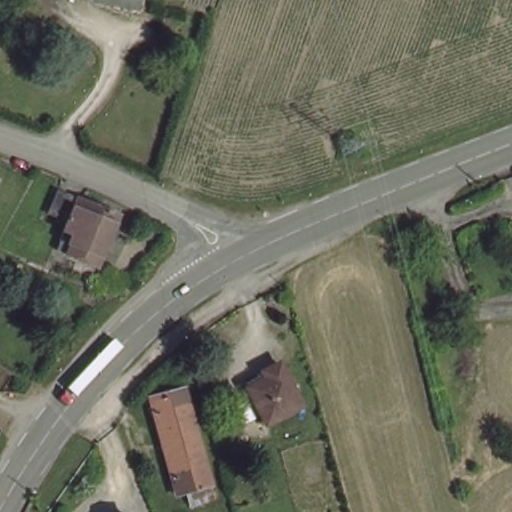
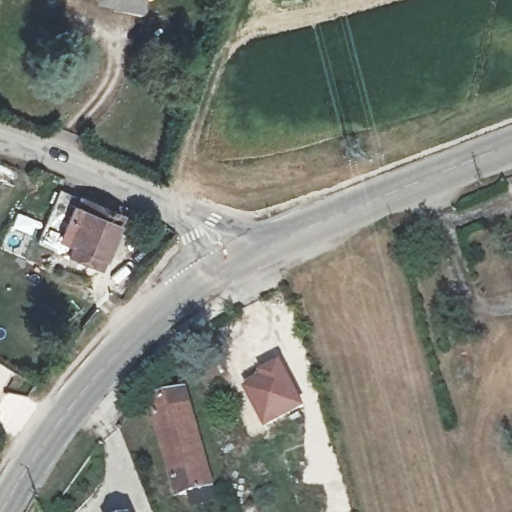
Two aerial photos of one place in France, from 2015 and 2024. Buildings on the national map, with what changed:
unchanged [(141,5),(116,0),(142,0),(141,5)]
unchanged [(105,265),(73,253),(82,226),(52,212),(65,189),(123,216),(105,265)]
unchanged [(258,367),(283,355),(306,402),(271,420),(250,379),(261,375),(258,367)]
unchanged [(208,480),(178,488),(150,394),(180,385),(208,480)]

